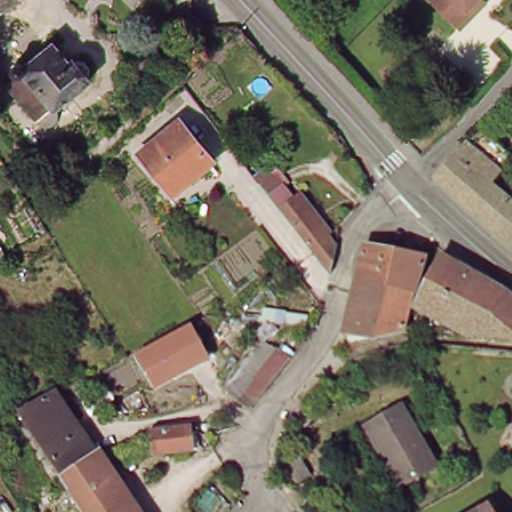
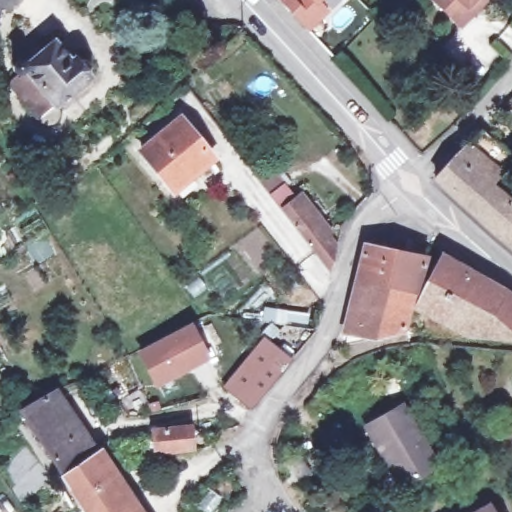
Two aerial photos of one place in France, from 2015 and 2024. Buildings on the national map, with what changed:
unchanged [(17,4),(13,8),(10,12),(5,14),(0,14),(0,0),(18,0),(17,4)]
new [(320,0),(331,10),(310,30),(279,0),(321,0),(320,0)]
unchanged [(472,13),(459,26),(432,0),(480,0),(483,2),(472,13)]
unchanged [(68,35),(86,56),(90,52),(92,55),(101,55),(106,62),(107,70),(105,71),(108,74),(87,91),(70,105),(68,102),(58,110),(52,115),(24,80),(35,72),(34,72),(33,71),(32,71),(32,70),(31,70),(30,70),(30,69),(29,69),(29,68),(28,67),(28,66),(28,65),(28,64),(28,63),(28,62),(28,61),(29,60),(30,60),(30,59),(31,58),(32,58),(32,57),(33,57),(34,57),(35,57),(36,57),(37,57),(38,57),(39,58),(40,58),(40,59),(68,35)]
unchanged [(183,193),(177,185),(147,148),(183,118),(197,134),(200,131),(220,155),(202,170),(205,174),(183,193)]
unchanged [(445,184),(480,147),(492,136),(512,154),(512,178),(502,190),(512,199),(512,238),(510,239),(472,205),(445,184)]
unchanged [(296,189),(305,202),(308,200),(348,252),(342,277),(283,199),(296,189)]
unchanged [(512,238),(512,240),(510,239),(512,238)]
unchanged [(407,331),(388,336),(383,337),(382,333),(350,331),(352,322),(357,299),(358,295),(363,275),(367,258),(368,251),(370,246),(431,258),(430,261),(429,265),(423,287),(420,296),(410,331),(407,331)]
unchanged [(448,259),(512,297),(512,340),(473,337),(422,309),(448,259)]
unchanged [(210,360),(153,390),(135,354),(191,325),(210,360)]
unchanged [(252,404),(238,393),(276,345),(290,357),(252,404)]
unchanged [(27,418),(37,413),(62,399),(102,460),(70,483),(27,418)]
unchanged [(437,471),(405,489),(370,429),(407,407),(427,440),(443,467),(437,471)]
unchanged [(190,428),(192,450),(153,452),(153,432),(190,428)]
unchanged [(304,453),(317,477),(297,490),(283,465),(304,453)]
unchanged [(135,512),(87,512),(70,483),(102,460),(135,512)]
unchanged [(490,512),(478,512),(487,507),(490,512)]

